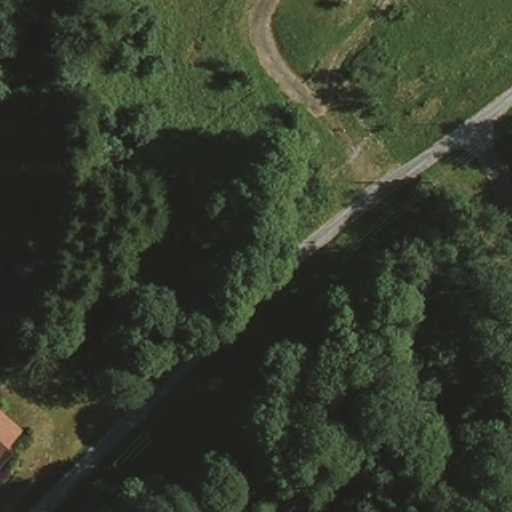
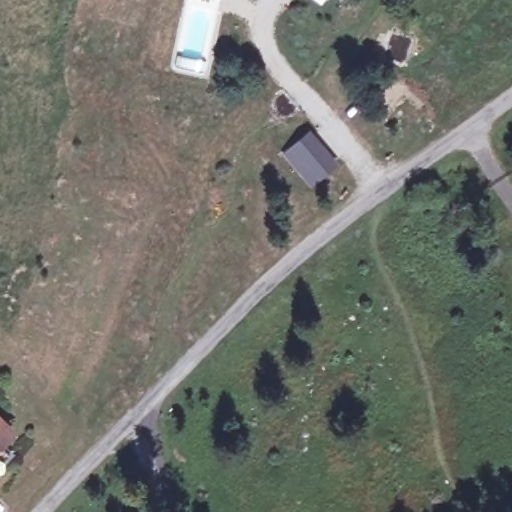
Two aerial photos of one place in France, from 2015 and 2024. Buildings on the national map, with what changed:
new [(310,131),(339,166),(312,188),(283,154),(310,131)]
unchanged [(0,445),(0,421),(12,432),(0,445)]

